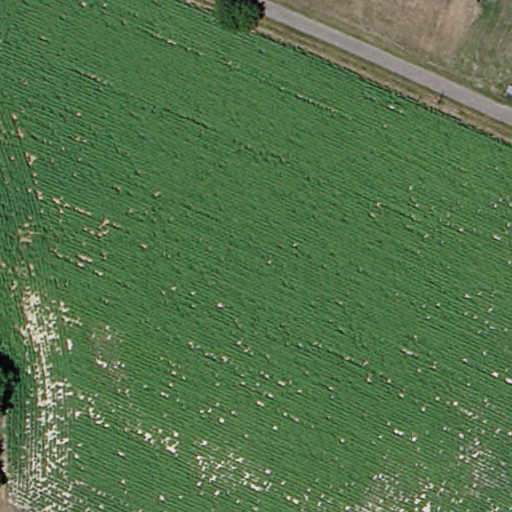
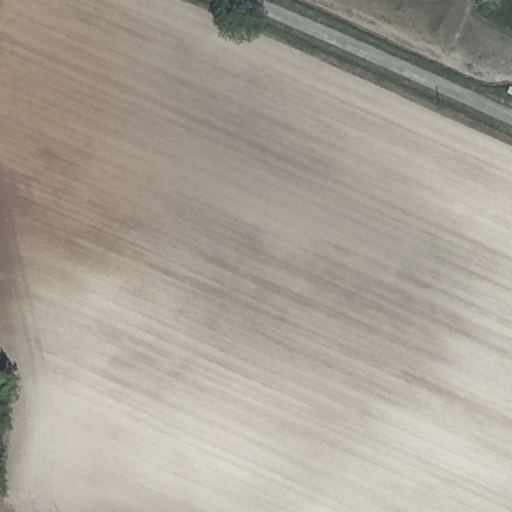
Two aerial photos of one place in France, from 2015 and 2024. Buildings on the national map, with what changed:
[]

